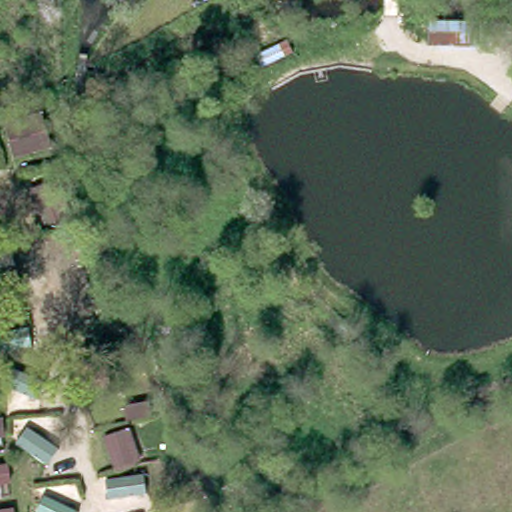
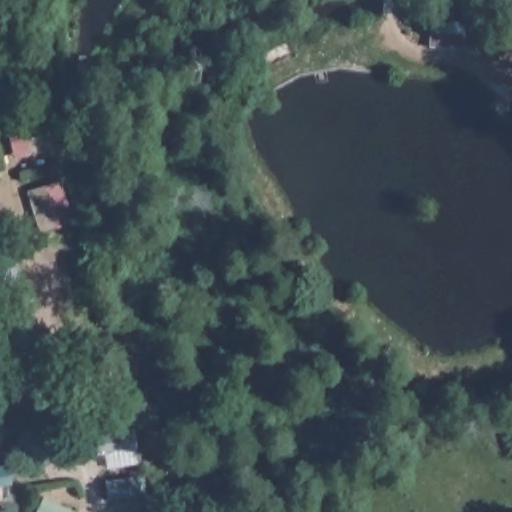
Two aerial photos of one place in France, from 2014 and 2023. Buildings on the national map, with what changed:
unchanged [(120,512),(114,488),(152,480),(160,500),(127,512),(120,512)]

